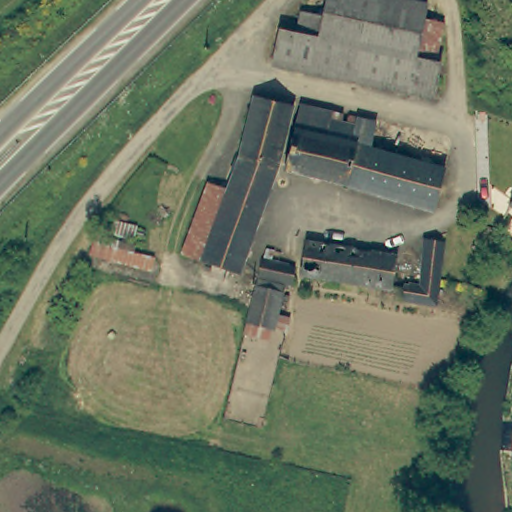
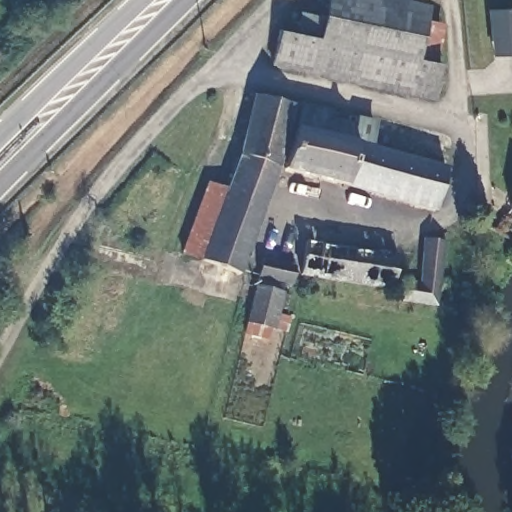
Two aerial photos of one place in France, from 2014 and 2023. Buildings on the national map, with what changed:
unchanged [(328,0),(405,0),(404,4),(427,8),(425,22),(445,26),(432,62),(321,34),(326,11),(328,0)]
unchanged [(321,34),(432,62),(446,65),(434,100),(273,61),(283,25),(300,27),(303,7),(326,11),(321,34)]
new [(492,56),(487,10),(512,7),(512,54),(492,56)]
unchanged [(201,208),(221,215),(240,157),(257,94),(299,106),(249,273),(207,260),(187,254),(197,223),(201,208)]
unchanged [(443,208),(287,164),(300,122),(305,124),(311,103),(341,112),(339,119),(365,127),(366,122),(385,128),(379,147),(455,168),(443,208)]
unchanged [(216,151),(240,157),(221,215),(201,208),(216,151)]
unchanged [(505,207),(512,198),(512,212),(505,207)]
unchanged [(406,284),(419,285),(433,240),(455,246),(437,304),(404,299),(406,289),(406,284)]
unchanged [(306,241),(395,255),(391,287),(301,274),(302,268),(306,241)]
unchanged [(265,259),(290,265),(286,279),(261,274),(265,259)]
unchanged [(258,289),(282,293),(276,326),(250,320),(258,289)]

